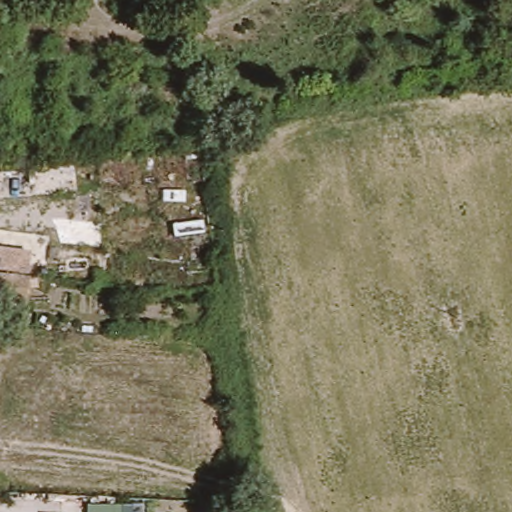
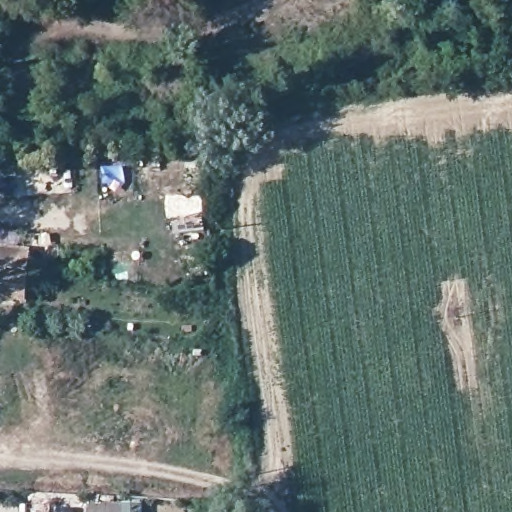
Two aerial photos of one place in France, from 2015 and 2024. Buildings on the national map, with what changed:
unchanged [(0,296),(0,249),(27,253),(26,299),(0,296)]
unchanged [(136,504),(136,512),(90,512),(90,505),(136,504)]

